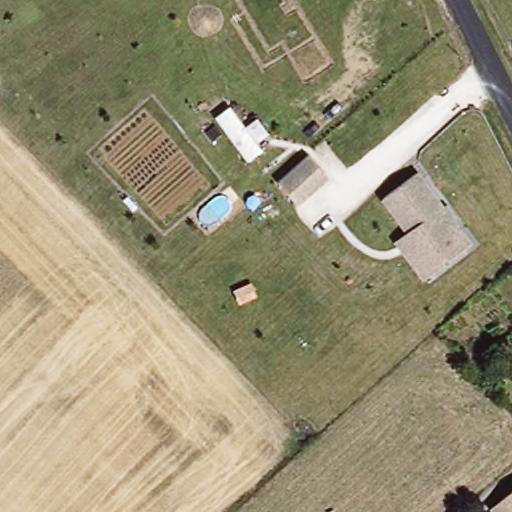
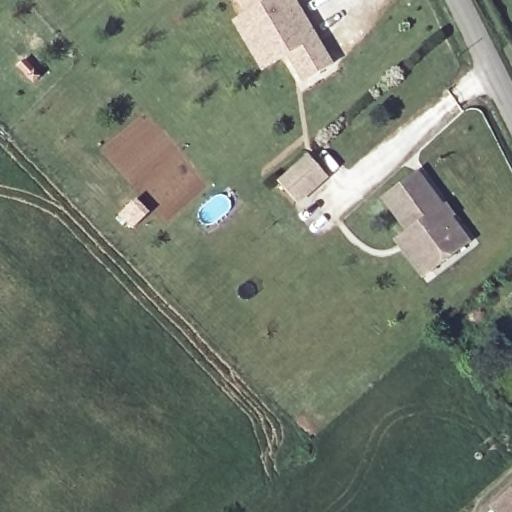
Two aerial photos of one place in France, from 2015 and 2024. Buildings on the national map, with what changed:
new [(303,81),(287,55),(262,71),(232,18),(241,12),(234,0),(298,0),(335,63),(303,81)]
unchanged [(294,200),(274,176),(304,150),(325,174),(294,200)]
unchanged [(388,237),(400,228),(375,195),(409,169),(462,241),(428,267),(416,276),(388,237)]
unchanged [(512,495),(512,512),(503,512),(499,507),(512,495)]

